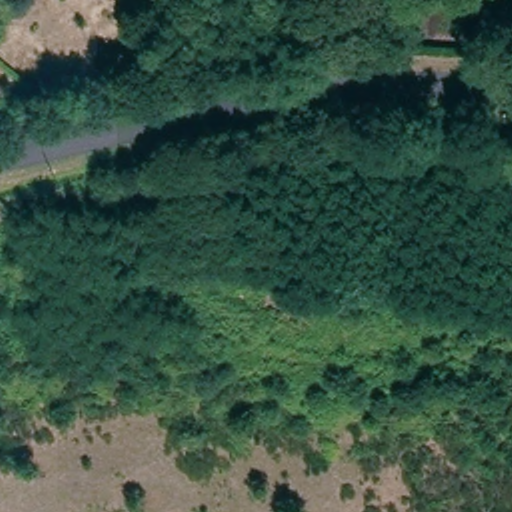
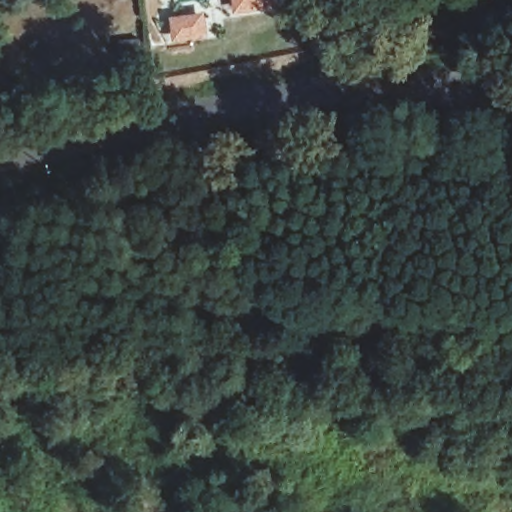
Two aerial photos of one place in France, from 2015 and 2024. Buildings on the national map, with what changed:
new [(290,2),(234,14),(232,0),(289,0),(290,2)]
new [(204,11),(209,37),(172,43),(168,16),(204,11)]

